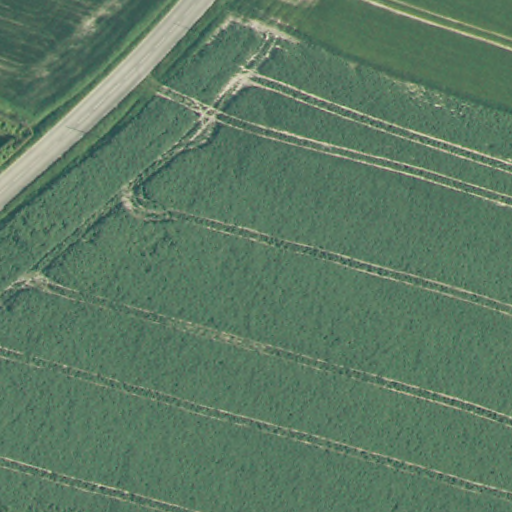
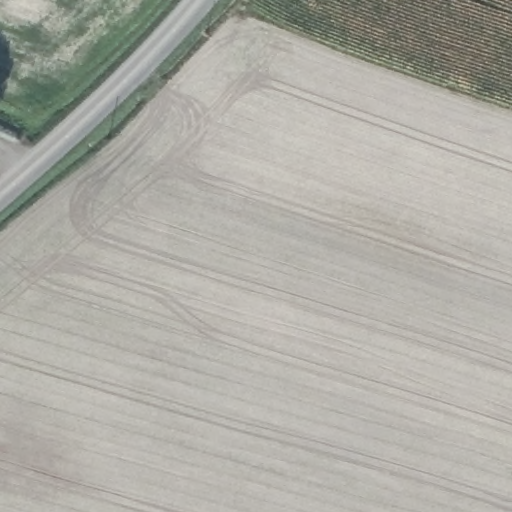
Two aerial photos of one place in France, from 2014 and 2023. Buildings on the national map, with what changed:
[]

